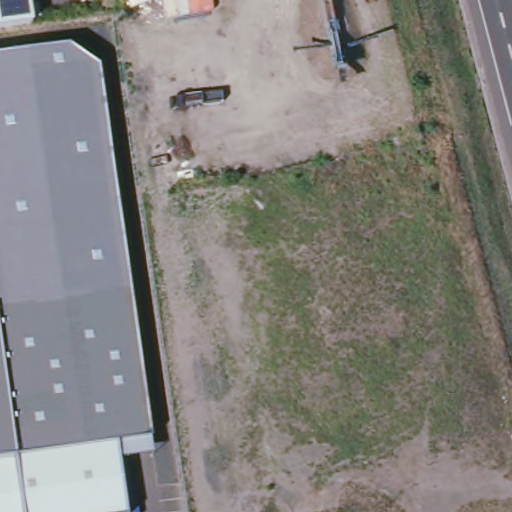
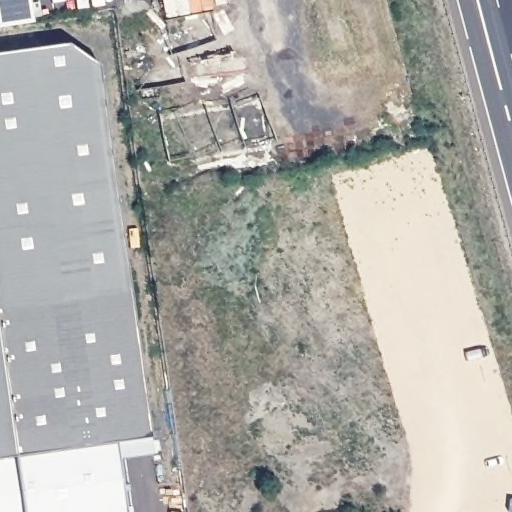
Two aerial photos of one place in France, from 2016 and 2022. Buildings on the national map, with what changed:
unchanged [(0,25),(0,0),(26,0),(29,21),(0,25)]
unchanged [(0,55),(68,46),(98,66),(131,287),(102,292),(0,306),(0,55)]
unchanged [(0,306),(102,292),(130,287),(131,287),(152,437),(154,455),(150,455),(125,459),(120,460),(127,512),(0,512),(0,306)]

